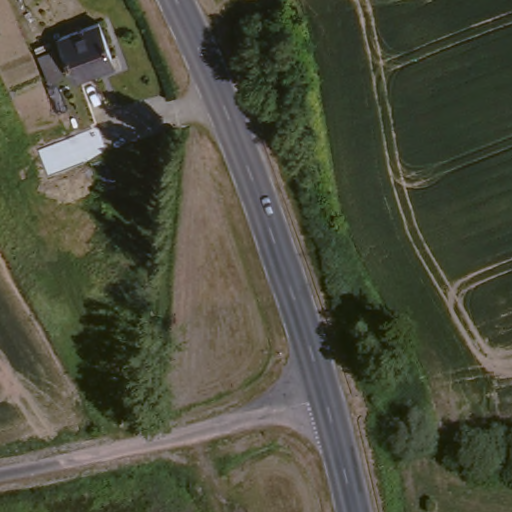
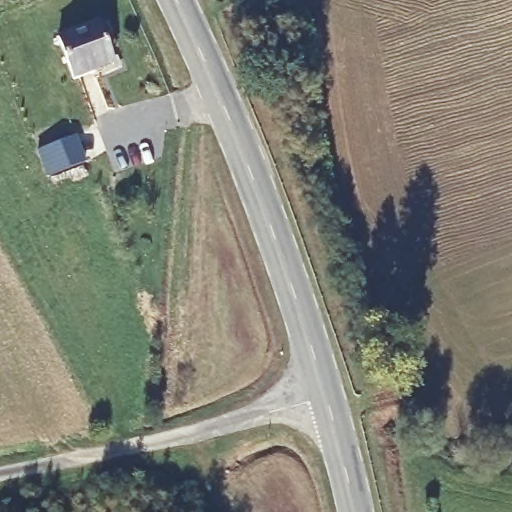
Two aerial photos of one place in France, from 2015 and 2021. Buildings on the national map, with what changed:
unchanged [(115,61),(80,79),(60,40),(95,21),(115,61)]
new [(74,131),(87,156),(52,174),(39,149),(74,131)]

